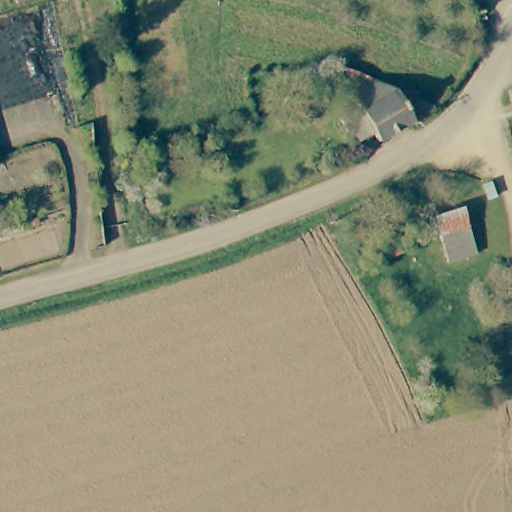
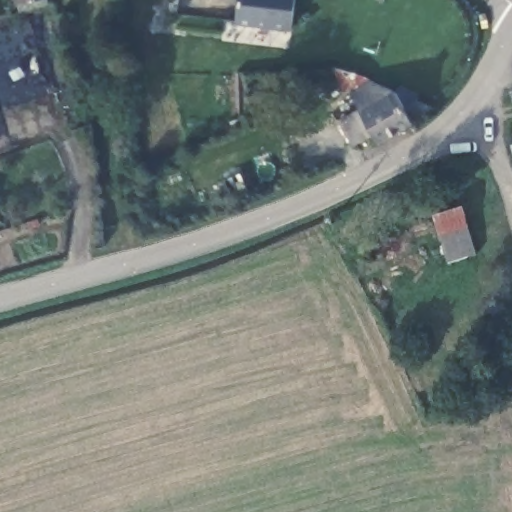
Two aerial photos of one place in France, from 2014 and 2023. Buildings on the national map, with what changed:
unchanged [(41,3),(14,10),(11,0),(40,0),(41,3)]
new [(239,0),(294,0),(291,29),(235,23),(239,0)]
unchanged [(333,120),(340,115),(352,108),(347,99),(369,84),(435,106),(376,141),(372,135),(358,144),(350,149),(333,120)]
unchanged [(455,206),(456,210),(472,258),(440,268),(424,218),(423,216),(455,206)]

